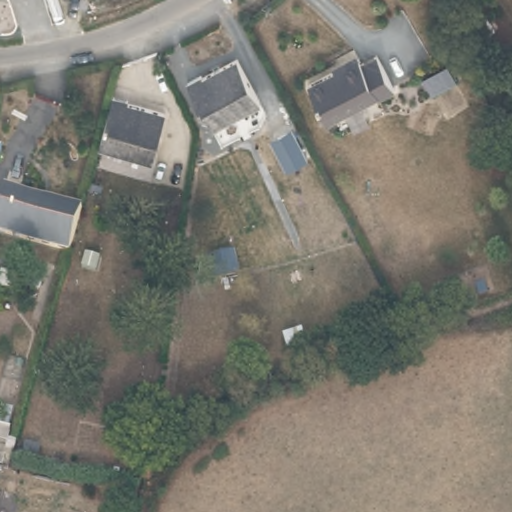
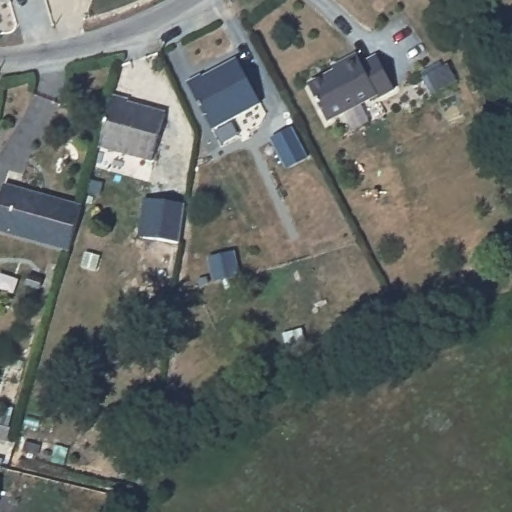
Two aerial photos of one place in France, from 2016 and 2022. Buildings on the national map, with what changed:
unchanged [(358,62),(379,59),(392,91),(374,98),(327,121),(307,86),(358,62)]
unchanged [(209,131),(185,90),(205,78),(206,80),(232,64),(255,102),(209,131)]
unchanged [(129,110),(164,118),(154,161),(99,149),(104,132),(112,100),(131,105),(129,110)]
unchanged [(295,144),(282,151),(271,130),(283,122),(295,144)]
unchanged [(62,252),(0,238),(11,194),(73,209),(62,252)]
new [(142,238),(147,199),(185,204),(180,243),(142,238)]
unchanged [(5,444),(0,443),(0,417),(12,420),(5,444)]
unchanged [(0,489),(0,485),(1,485),(0,489)]

